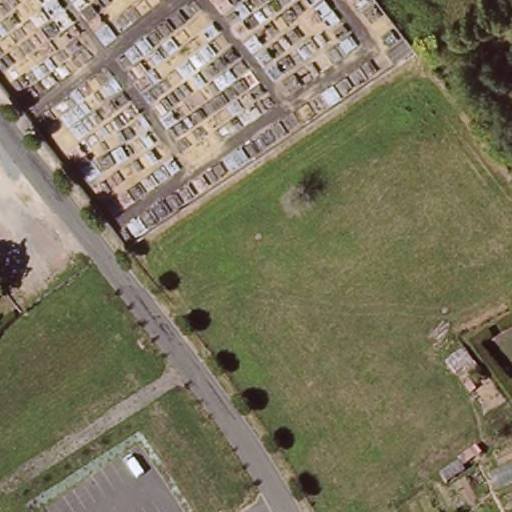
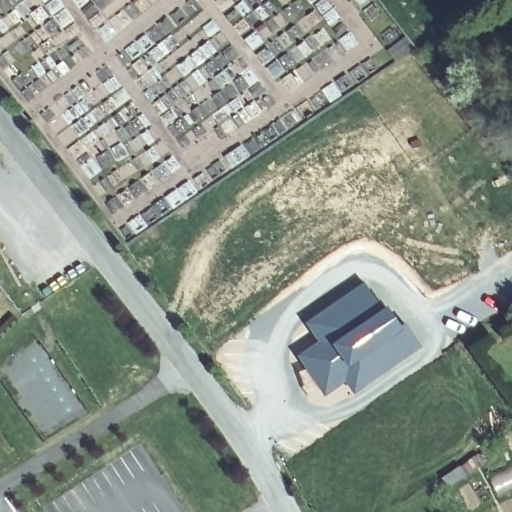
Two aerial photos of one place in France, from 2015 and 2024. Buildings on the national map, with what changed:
new [(315,341),(304,322),(365,281),(383,306),(385,304),(402,325),(405,322),(422,347),(354,395),(344,382),(324,397),(295,355),(315,341)]

